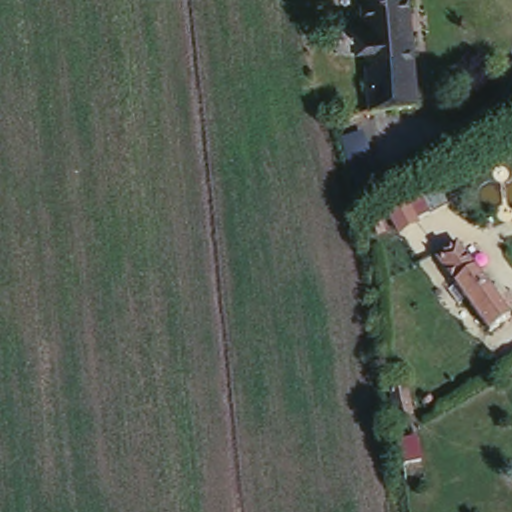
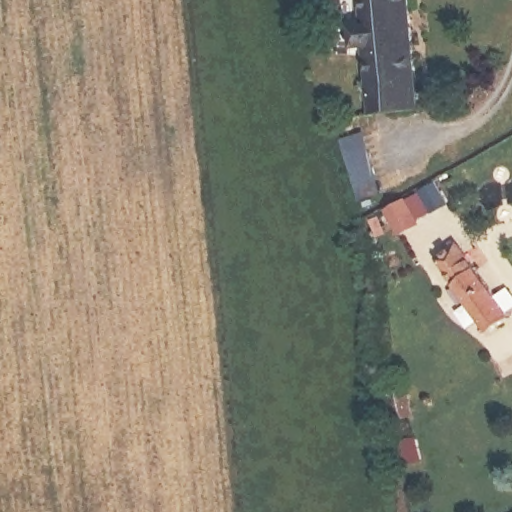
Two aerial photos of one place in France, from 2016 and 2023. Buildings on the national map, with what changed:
unchanged [(359,48),(356,25),(362,24),(360,0),(409,0),(418,107),(370,114),(365,47),(359,48)]
unchanged [(347,138),(360,134),(376,195),(363,199),(347,138)]
unchanged [(449,292),(456,286),(437,259),(457,244),(510,318),(490,332),(467,300),(458,306),(449,292)]
unchanged [(391,393),(406,390),(411,411),(396,414),(391,393)]
unchanged [(400,441),(415,438),(419,462),(403,464),(400,441)]

